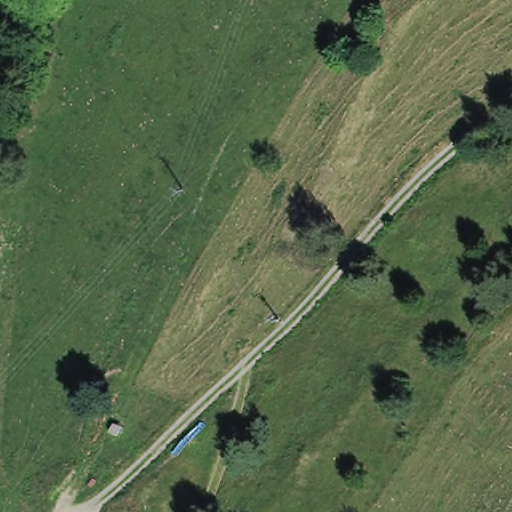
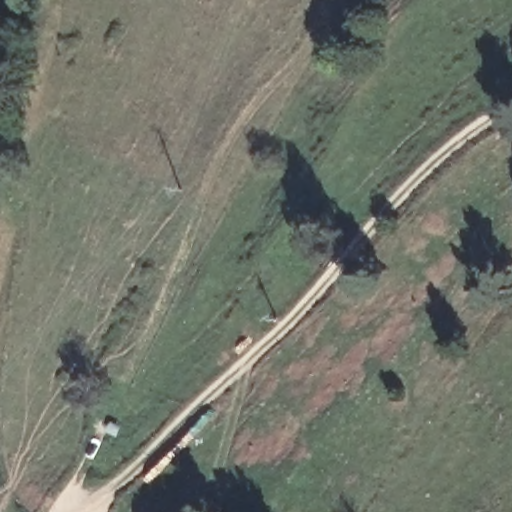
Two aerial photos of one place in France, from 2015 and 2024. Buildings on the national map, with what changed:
[]

